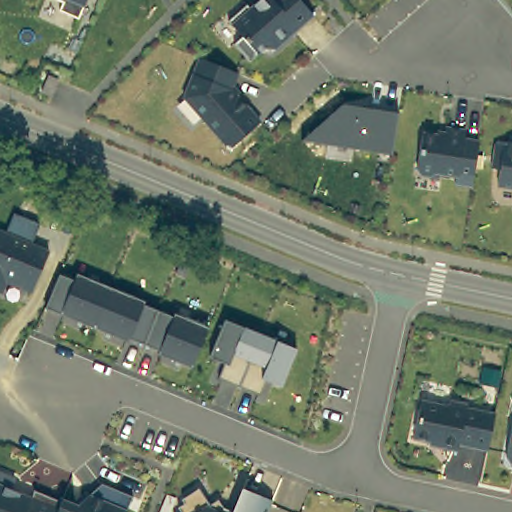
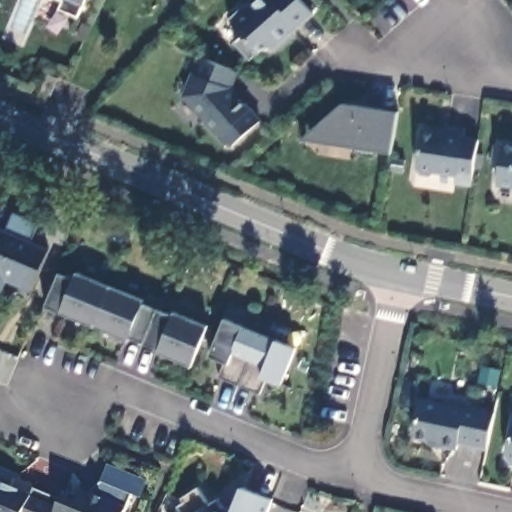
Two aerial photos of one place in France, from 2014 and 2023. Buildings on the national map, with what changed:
unchanged [(59,0),(82,0),(77,12),(58,3),(59,0)]
unchanged [(242,0),(248,0),(249,1),(250,0),(304,0),(312,9),(274,42),(264,41),(248,55),(232,37),(241,30),(227,14),(242,0)]
unchanged [(236,66),(229,82),(248,105),(218,131),(183,90),(199,51),(236,66)]
unchanged [(40,84),(46,67),(57,71),(50,88),(40,84)]
unchanged [(390,153),(374,151),(304,140),(344,103),(383,110),(399,112),(390,153)]
unchanged [(446,130),(447,121),(467,125),(466,132),(480,135),(473,181),(456,179),(458,171),(437,167),(433,171),(421,169),(418,165),(424,126),(446,130)]
unchanged [(512,181),(496,179),(498,163),(491,162),(494,138),(512,141),(512,181)]
unchanged [(32,242),(49,248),(33,291),(6,281),(1,294),(0,294),(0,227),(7,230),(13,214),(38,224),(32,242)]
unchanged [(191,367),(159,355),(160,351),(130,339),(128,341),(47,308),(61,272),(74,277),(75,275),(208,326),(191,367)]
unchanged [(282,386),(265,380),(259,393),(221,378),(229,363),(212,357),(226,320),(297,347),(282,386)]
unchanged [(443,399),(447,396),(447,393),(464,397),(464,401),(492,407),(492,408),(484,444),(456,438),(454,445),(436,441),(437,437),(410,432),(419,393),(443,399)]
unchanged [(503,452),(512,410),(512,459),(507,457),(503,452)]
unchanged [(12,472),(6,485),(12,487),(17,485),(28,490),(31,482),(59,493),(57,497),(51,512),(0,512),(0,467),(12,472)]
unchanged [(74,497),(99,476),(130,488),(120,512),(51,512),(57,497),(59,493),(59,492),(60,492),(74,497)]
unchanged [(178,506),(175,500),(181,496),(178,492),(196,481),(206,497),(215,492),(220,500),(230,504),(240,481),(270,493),(262,512),(170,512),(170,511),(178,506)]

